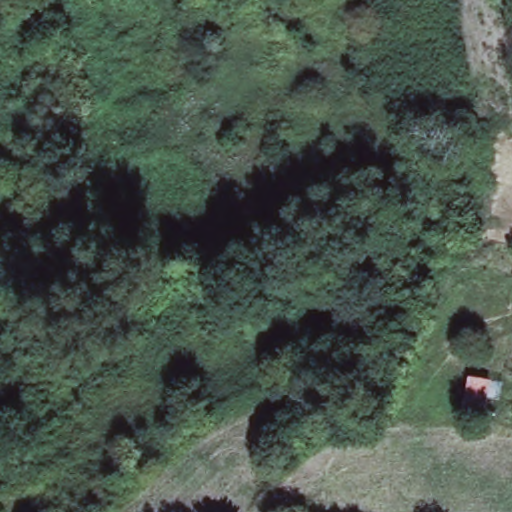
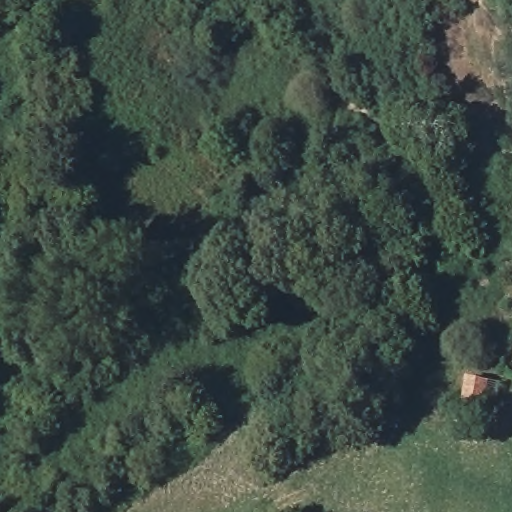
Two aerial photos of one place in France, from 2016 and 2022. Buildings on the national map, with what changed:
unchanged [(490,379),(485,410),(463,407),(467,376),(490,379)]

